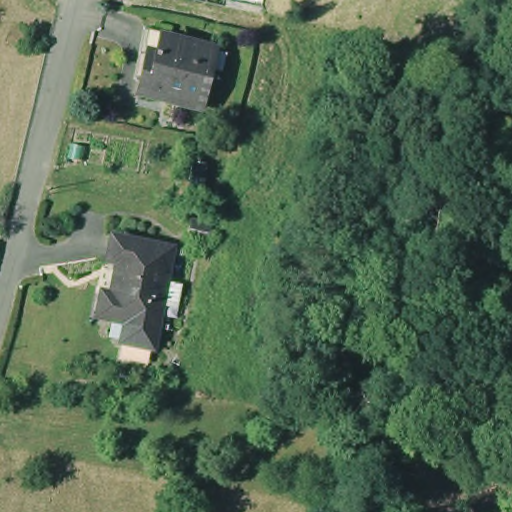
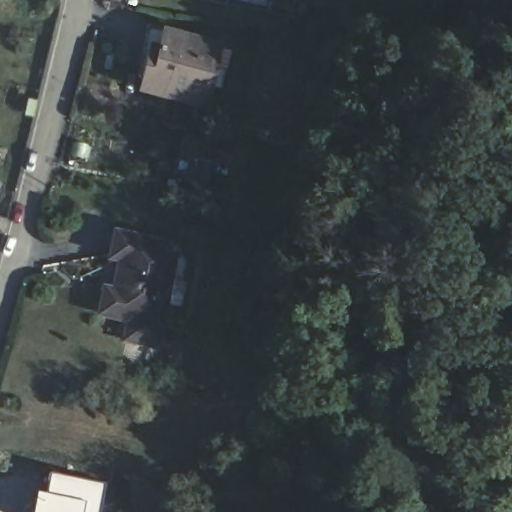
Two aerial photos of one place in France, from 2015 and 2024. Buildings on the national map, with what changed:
unchanged [(219,51),(208,108),(148,94),(157,55),(166,57),(170,40),(219,51)]
unchanged [(211,238),(191,233),(196,215),(216,219),(211,238)]
unchanged [(131,342),(133,328),(134,322),(103,316),(108,294),(113,261),(118,237),(178,249),(164,327),(163,334),(159,347),(131,342)]
new [(48,476),(103,484),(97,512),(83,512),(84,502),(45,494),(48,476)]
new [(35,493),(45,494),(84,502),(83,512),(32,512),(35,493)]

